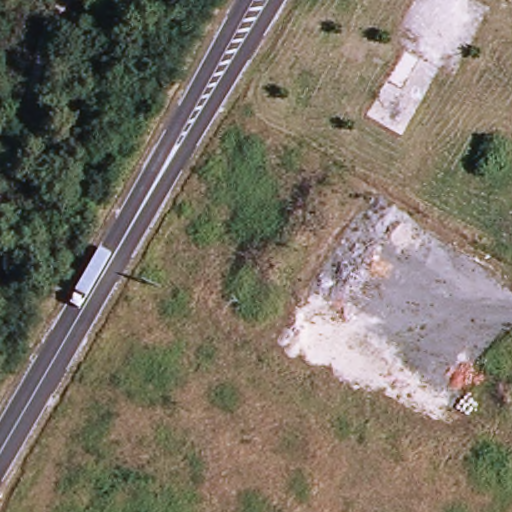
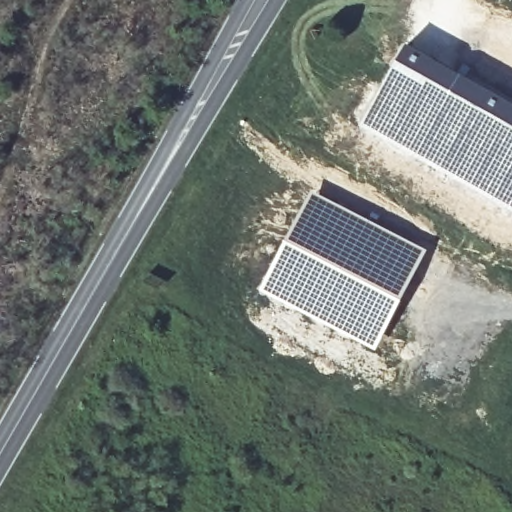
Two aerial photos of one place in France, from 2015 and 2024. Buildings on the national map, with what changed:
new [(405,43),(459,71),(512,101),(512,209),(409,152),(362,124),(405,43)]
demolished [(365,112),(405,46),(440,68),(400,134),(365,112)]
new [(284,242),(311,189),(428,249),(376,350),(261,290),(284,242)]

